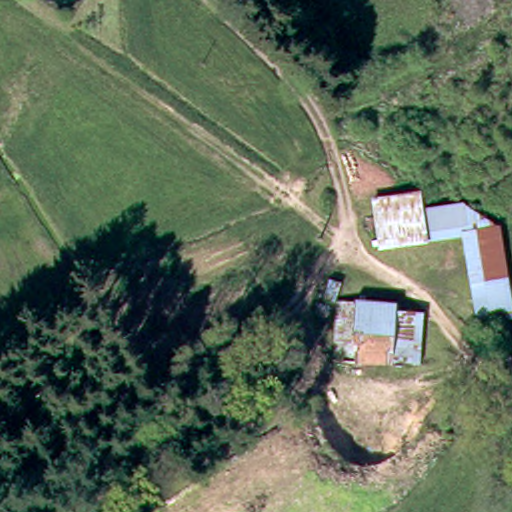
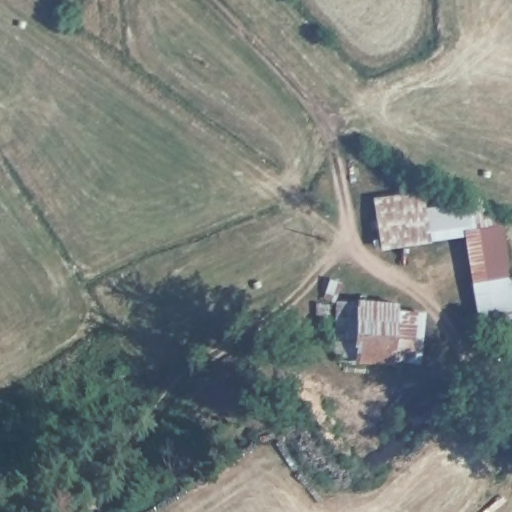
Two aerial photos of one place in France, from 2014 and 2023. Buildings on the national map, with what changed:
unchanged [(422,184),(425,197),(499,190),(512,288),(512,311),(470,315),(462,233),(378,246),(370,190),(422,184)]
unchanged [(371,359),(355,358),(354,297),(370,297),(371,359)]
unchanged [(420,351),(404,351),(404,360),(383,359),(371,359),(370,297),(399,297),(400,298),(402,310),(411,310),(419,319),(420,351)]

